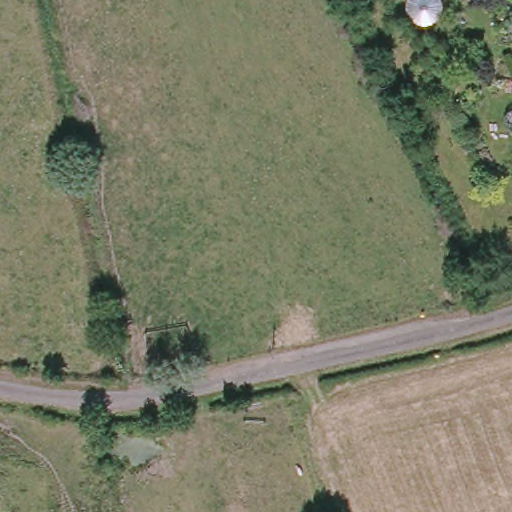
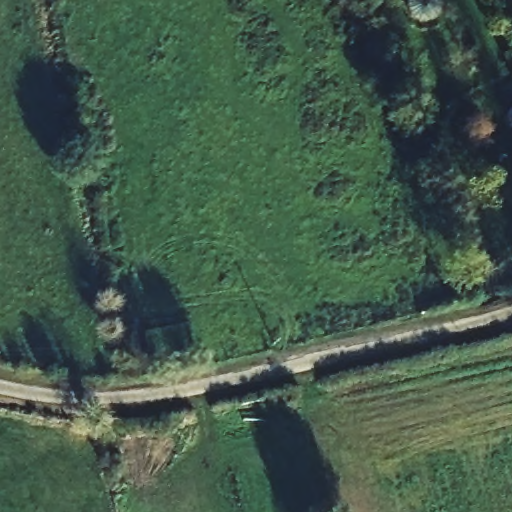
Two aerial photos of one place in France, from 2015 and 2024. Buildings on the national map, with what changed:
[]

